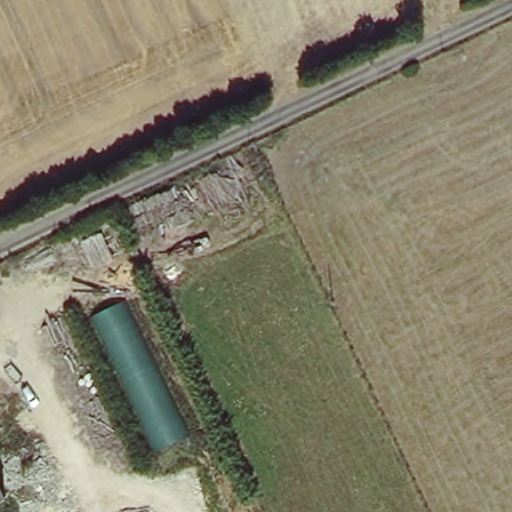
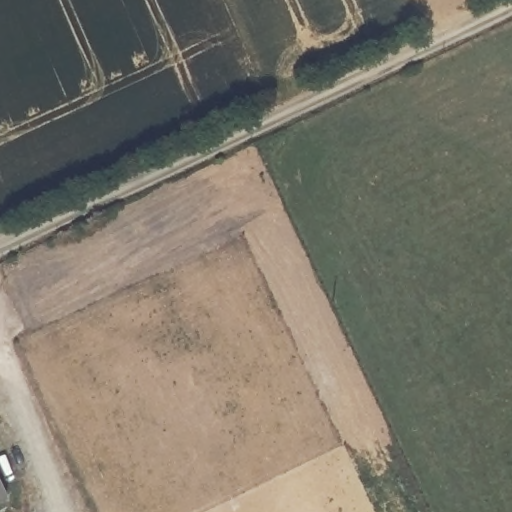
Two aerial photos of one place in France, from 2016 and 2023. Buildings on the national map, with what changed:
demolished [(123,303),(187,435),(156,453),(94,317),(123,303)]
unchanged [(1,501),(0,502),(0,498),(1,501)]

